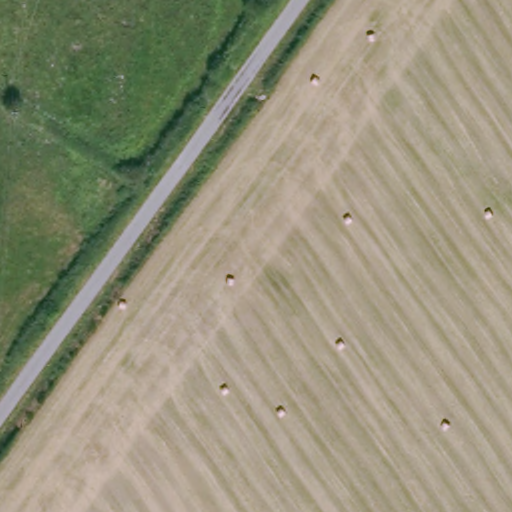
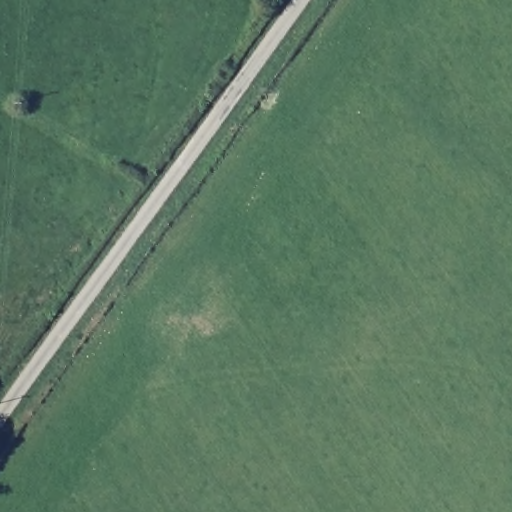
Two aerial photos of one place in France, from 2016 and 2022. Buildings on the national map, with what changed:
[]

